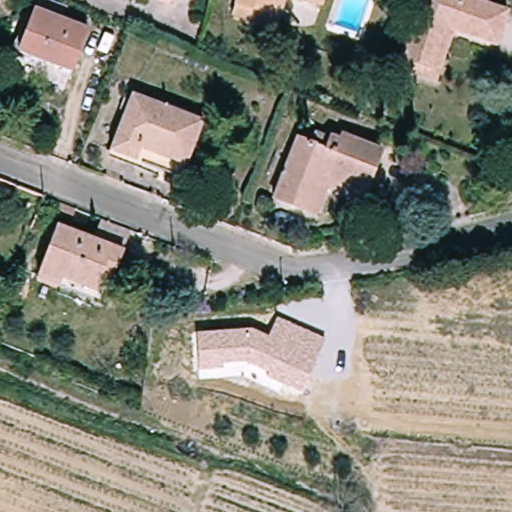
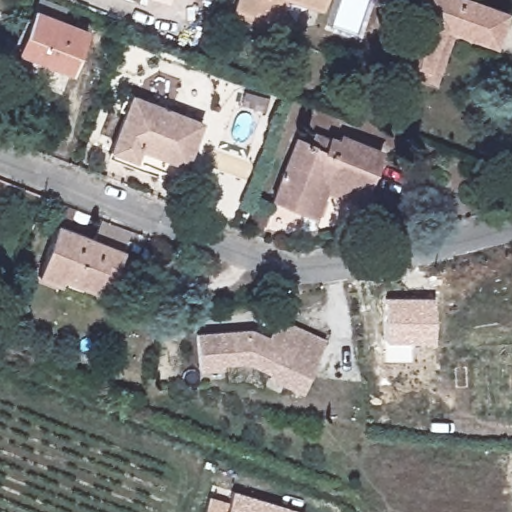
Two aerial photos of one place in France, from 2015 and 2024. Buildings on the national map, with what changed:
unchanged [(233,15),(238,4),(239,0),(328,0),(323,14),(290,1),(279,33),(233,15)]
unchanged [(512,12),(512,15),(501,47),(451,30),(436,71),(406,60),(426,0),(476,0),(512,12)]
unchanged [(86,29),(71,69),(38,56),(40,51),(20,43),(35,9),(86,29)]
unchanged [(206,117),(190,164),(146,148),(143,159),(116,149),(137,91),(206,117)]
unchanged [(388,148),(371,188),(329,171),(320,193),(306,188),(300,201),(280,193),(303,134),(331,146),(336,133),(345,136),(346,132),(388,148)]
unchanged [(0,202),(0,200),(1,200),(0,202)]
unchanged [(75,207),(77,207),(73,218),(55,210),(58,200),(75,207)]
unchanged [(130,232),(132,233),(116,274),(125,277),(122,284),(113,280),(113,283),(105,280),(98,297),(64,284),(63,289),(40,281),(60,229),(95,242),(103,222),(130,232)]
new [(387,342),(386,297),(435,297),(435,343),(387,342)]
unchanged [(326,339),(301,391),(266,376),(268,372),(246,360),(222,362),(223,368),(201,370),(198,333),(251,328),(270,336),(277,318),(326,339)]
new [(230,500),(233,490),(306,511),(306,512),(204,512),(209,495),(230,500)]

